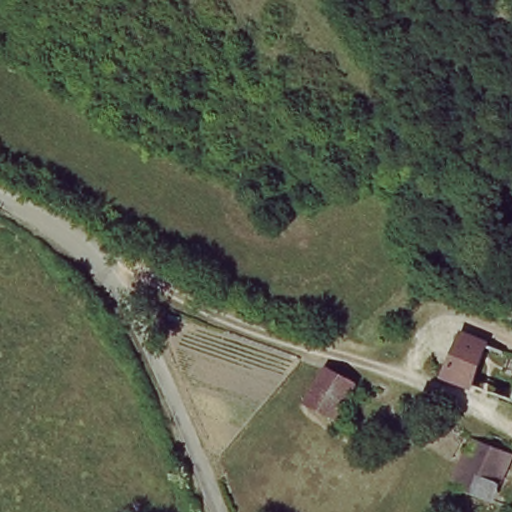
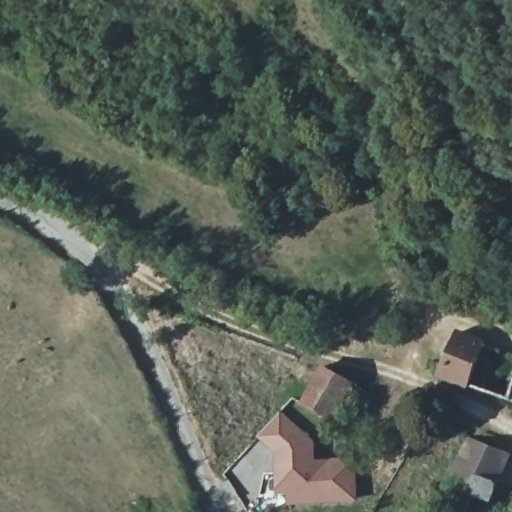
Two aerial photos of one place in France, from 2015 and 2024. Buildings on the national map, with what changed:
unchanged [(480,342),(467,387),(461,385),(441,377),(453,333),(480,342)]
unchanged [(306,405),(332,368),(358,386),(334,425),(306,405)]
unchanged [(408,417),(417,400),(432,406),(439,409),(427,428),(408,417)]
new [(315,447),(312,467),(354,470),(354,512),(285,512),(269,498),(274,462),(253,445),(278,416),(315,447)]
unchanged [(465,440),(478,445),(507,456),(497,481),(496,483),(488,503),(446,487),(449,481),(454,467),(465,440)]

